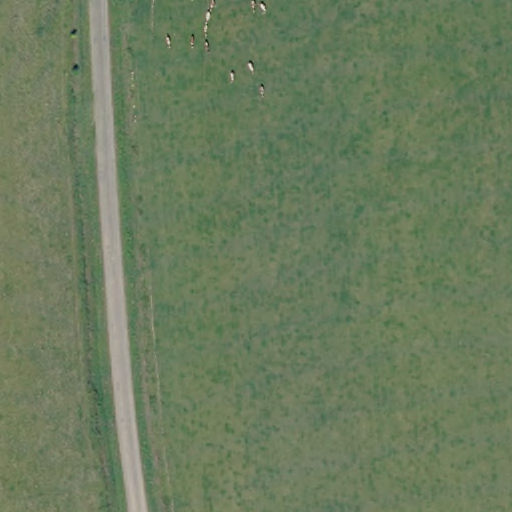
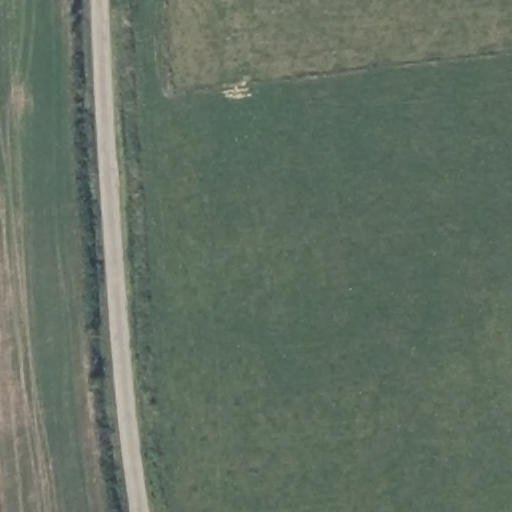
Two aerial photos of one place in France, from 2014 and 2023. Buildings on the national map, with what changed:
[]

